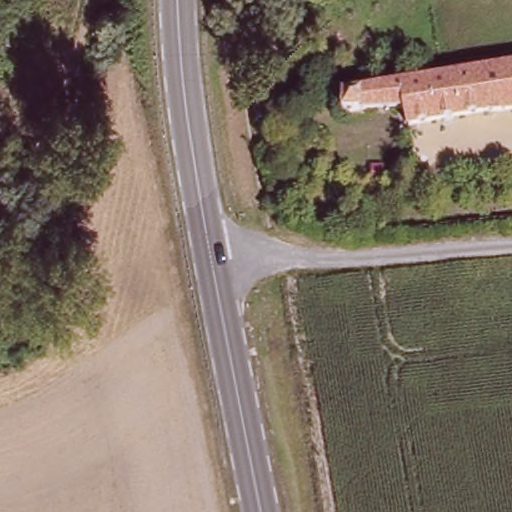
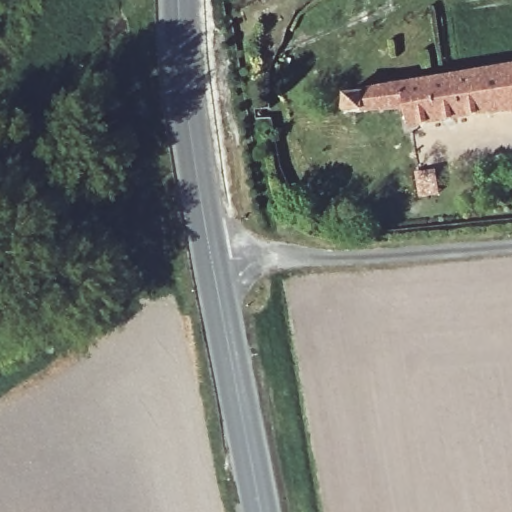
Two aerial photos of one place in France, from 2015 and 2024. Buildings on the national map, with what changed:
unchanged [(410,127),(408,109),(347,112),(346,86),(512,65),(512,117),(410,127)]

